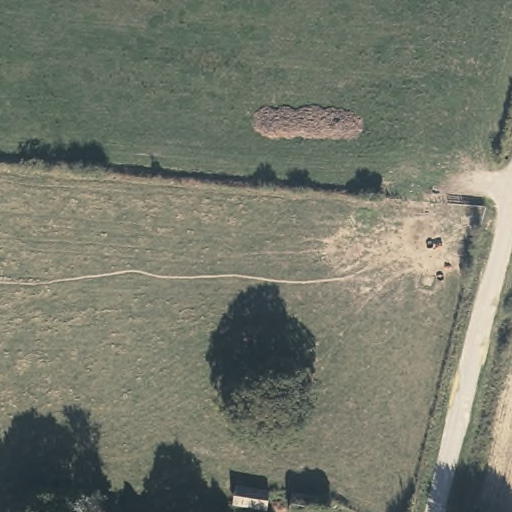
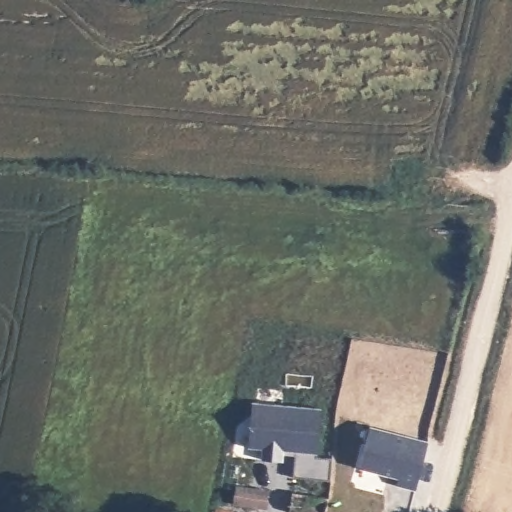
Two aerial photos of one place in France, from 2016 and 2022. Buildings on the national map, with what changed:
new [(295,455),(282,455),(282,461),(261,460),(262,448),(247,447),(252,402),(322,407),(317,457),(332,458),(331,480),(293,476),(295,455)]
new [(370,426),(428,440),(416,490),(397,486),(399,477),(359,468),(370,426)]
unchanged [(270,490),(267,506),(236,502),(237,486),(270,490)]

